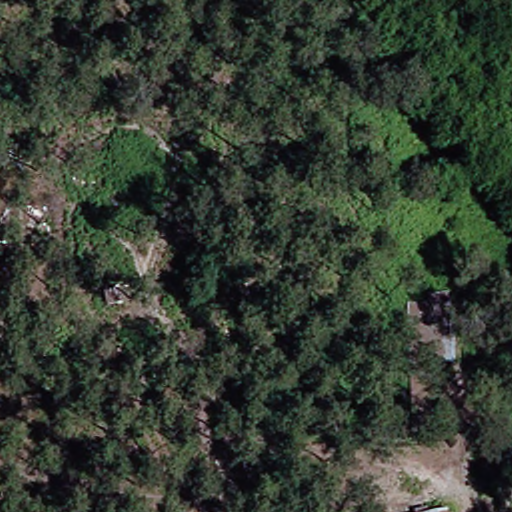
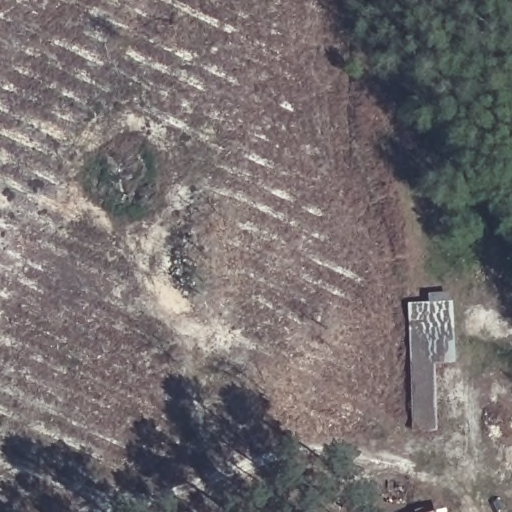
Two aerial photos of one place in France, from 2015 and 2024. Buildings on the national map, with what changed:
unchanged [(411,304),(433,302),(432,293),(452,292),(457,361),(427,406),(402,393),(420,364),(413,363),(411,304)]
unchanged [(440,509),(441,512),(427,512),(440,509)]

